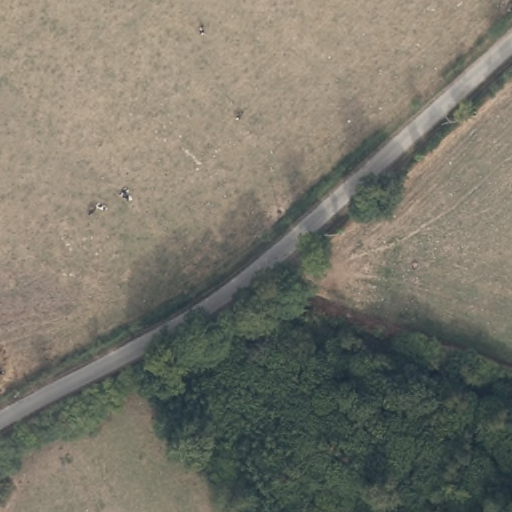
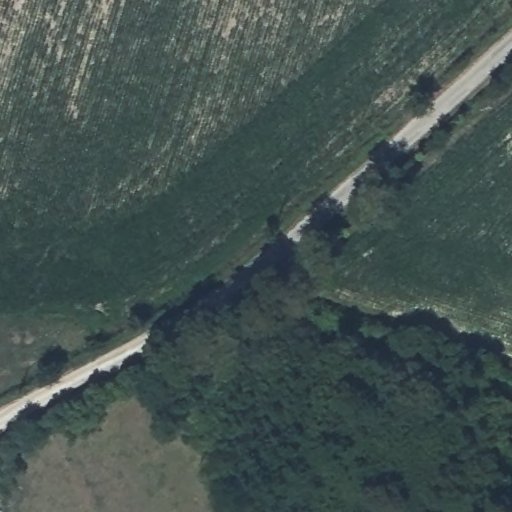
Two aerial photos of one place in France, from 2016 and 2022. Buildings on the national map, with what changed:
[]

